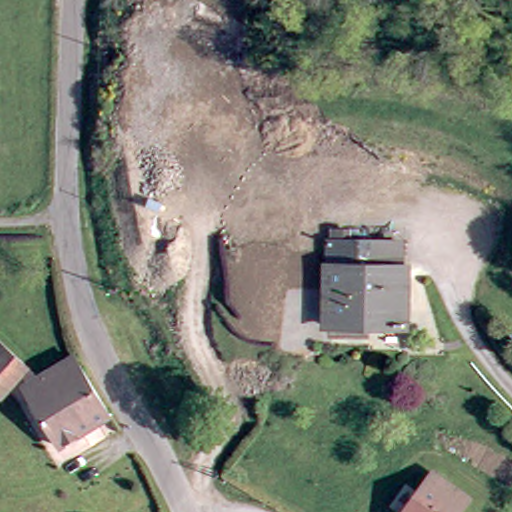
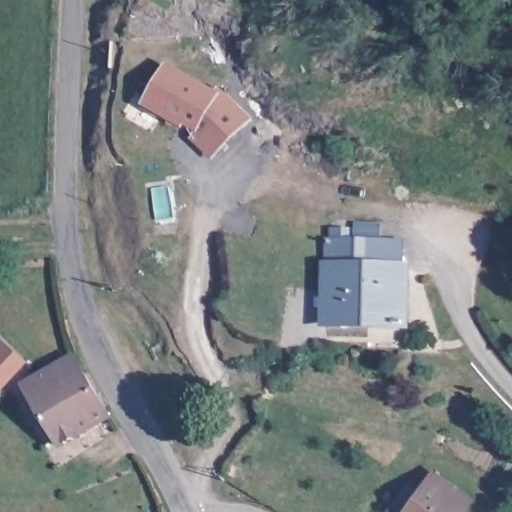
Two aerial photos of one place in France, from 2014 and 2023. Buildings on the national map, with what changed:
new [(254,120),(212,161),(190,140),(195,132),(184,126),(182,129),(143,107),(167,64),(216,90),(218,85),(254,120)]
unchanged [(348,328),(315,326),(320,237),(331,237),(331,220),(346,220),(345,236),(373,237),(399,238),(398,265),(401,266),(400,313),(400,332),(348,328)]
unchanged [(20,365),(0,388),(0,347),(20,365)]
unchanged [(25,411),(32,407),(21,389),(73,359),(107,416),(56,447),(39,419),(32,423),(25,411)]
unchanged [(462,512),(397,512),(425,468),(471,498),(462,512)]

